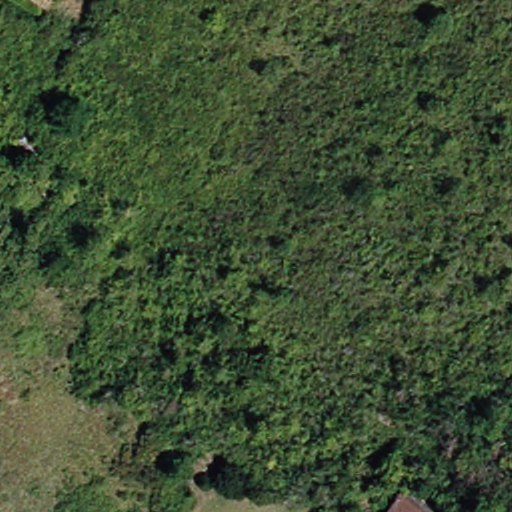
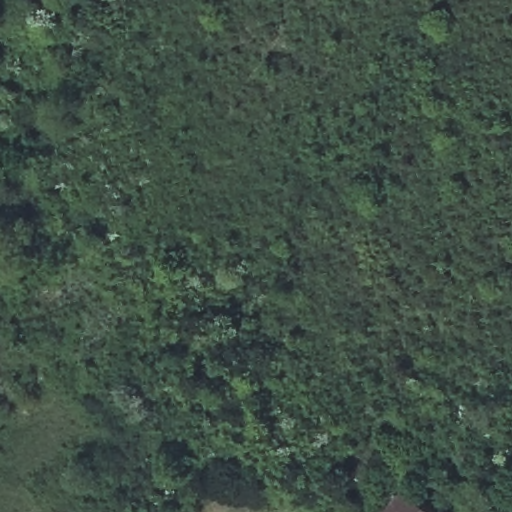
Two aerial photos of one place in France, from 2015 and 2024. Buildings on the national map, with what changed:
unchanged [(396,490),(427,512),(381,512),(396,490)]

